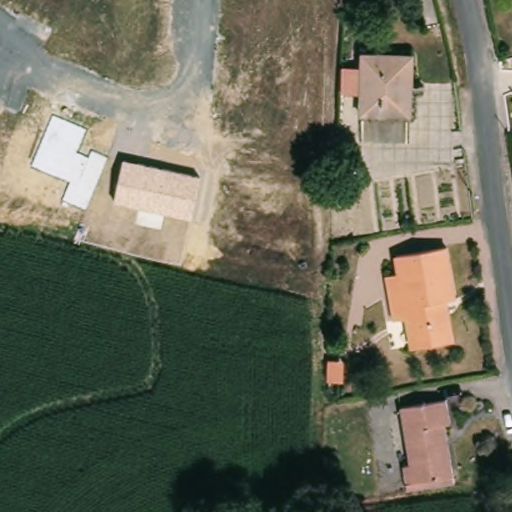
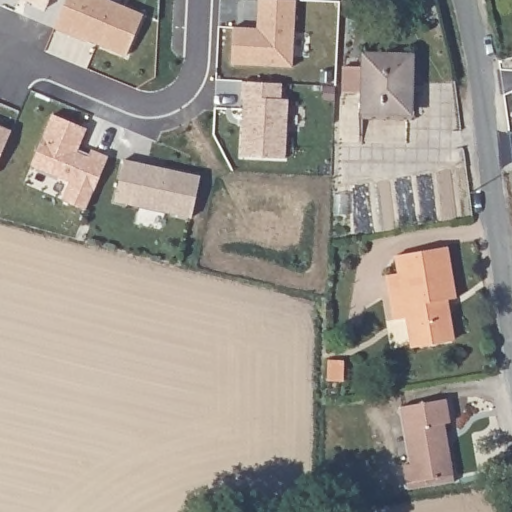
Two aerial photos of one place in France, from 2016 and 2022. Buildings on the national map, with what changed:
new [(47,7),(30,0),(50,0),(47,7)]
new [(87,41),(71,34),(55,27),(66,0),(111,0),(144,13),(127,55),(96,42),(88,39),(87,41)]
new [(258,27),(259,13),(259,0),(296,0),(293,66),(232,63),(234,26),(258,27)]
unchanged [(360,2),(342,1),(342,0),(360,0),(360,2)]
unchanged [(366,54),(417,54),(416,115),(365,115),(366,54)]
new [(245,97),(242,97),(242,80),(282,82),(281,98),(289,98),(286,157),(242,155),(245,97)]
new [(54,113),(87,127),(77,151),(90,156),(92,148),(109,155),(86,208),(63,198),(70,180),(32,164),(54,113)]
new [(0,158),(0,128),(11,132),(0,158)]
unchanged [(192,217),(115,200),(124,159),(200,175),(192,217)]
unchanged [(450,300),(457,340),(419,347),(414,318),(397,320),(390,276),(403,274),(400,256),(452,247),(461,297),(450,300)]
unchanged [(341,360),(342,382),(326,382),(326,360),(341,360)]
unchanged [(407,465),(414,464),(405,407),(451,399),(455,422),(448,423),(460,482),(413,489),(407,465)]
unchanged [(352,483),(371,482),(372,493),(353,495),(352,483)]

